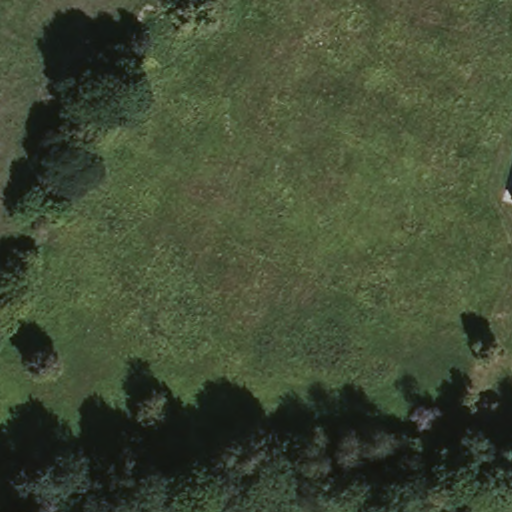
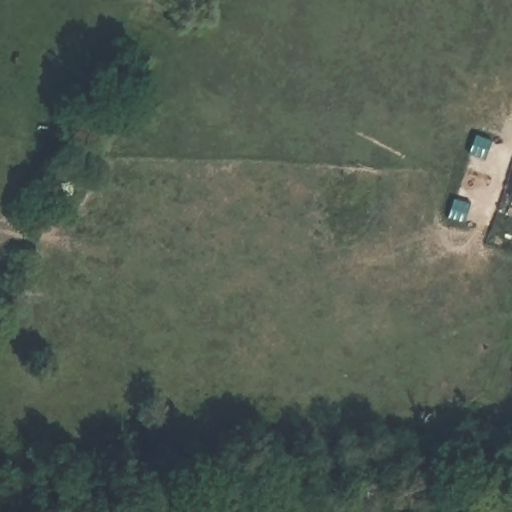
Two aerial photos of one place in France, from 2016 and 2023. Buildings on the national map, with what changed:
unchanged [(512,196),(510,195),(512,189),(512,196)]

